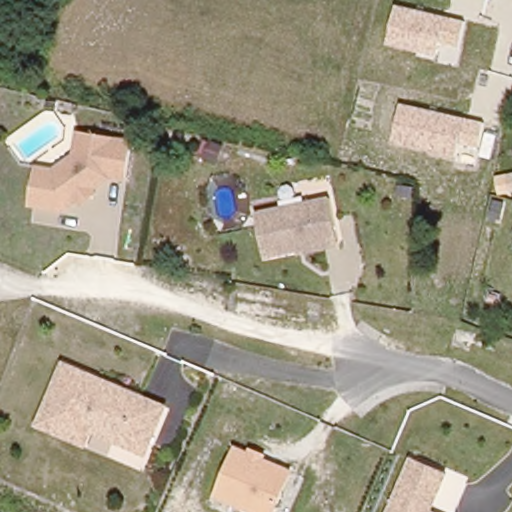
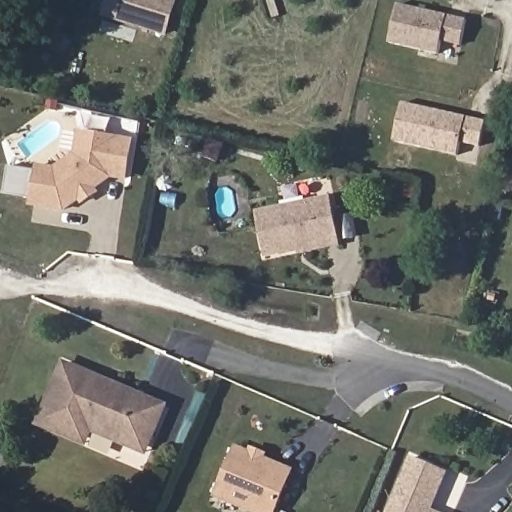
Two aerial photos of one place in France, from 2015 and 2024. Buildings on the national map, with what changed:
new [(126,0),(178,0),(167,38),(119,22),(126,0)]
unchanged [(440,42),(438,54),(390,43),(397,4),(448,16),(468,21),(461,46),(440,42)]
unchanged [(460,143),(459,156),(393,143),(402,103),(467,117),(486,122),(481,147),(460,143)]
unchanged [(128,175),(112,172),(71,214),(39,209),(45,171),(58,173),(77,152),(81,129),(99,131),(135,137),(128,175)]
unchanged [(334,202),(342,244),(267,260),(259,217),(334,202)]
unchanged [(147,458),(92,437),(87,447),(37,426),(65,360),(170,404),(147,458)]
unchanged [(275,512),(253,512),(217,497),(236,449),(291,472),(275,512)]
unchanged [(447,475),(432,512),(391,512),(412,461),(447,475)]

